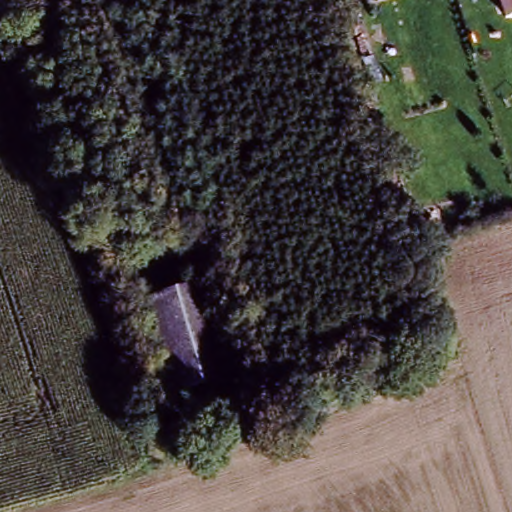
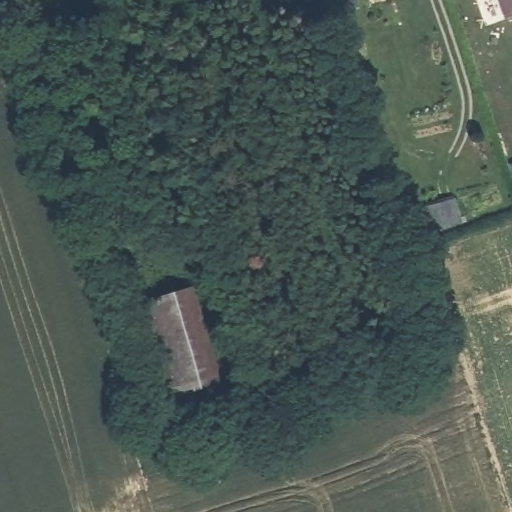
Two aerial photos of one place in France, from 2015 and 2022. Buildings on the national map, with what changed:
unchanged [(500,0),(512,0),(512,15),(505,17),(500,0)]
unchanged [(193,287),(222,384),(164,401),(135,304),(193,287)]

